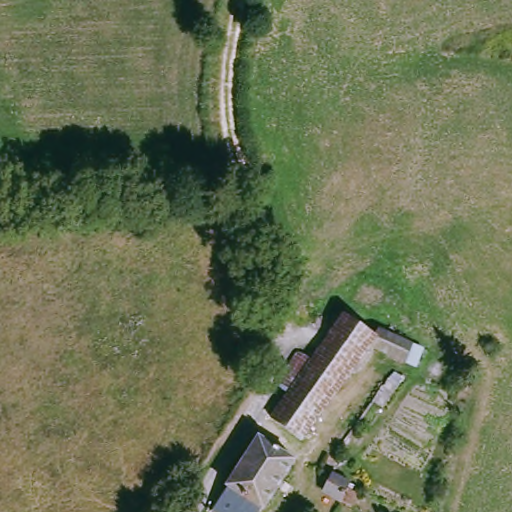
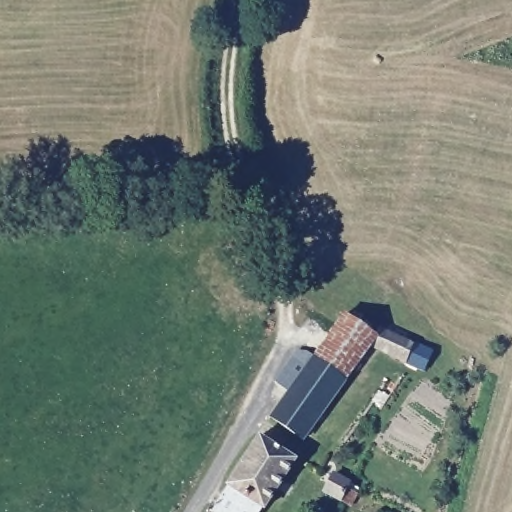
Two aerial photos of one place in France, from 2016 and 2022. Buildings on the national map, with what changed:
unchanged [(381,331),(415,351),(404,367),(371,350),(306,443),(275,422),(293,396),(281,387),(300,356),(314,365),(333,337),(347,319),(376,337),(381,331)]
unchanged [(296,461),(264,510),(228,486),(262,436),(296,461)]
unchanged [(354,485),(351,491),(362,499),(355,511),(344,503),(330,493),(341,475),(354,485)]

